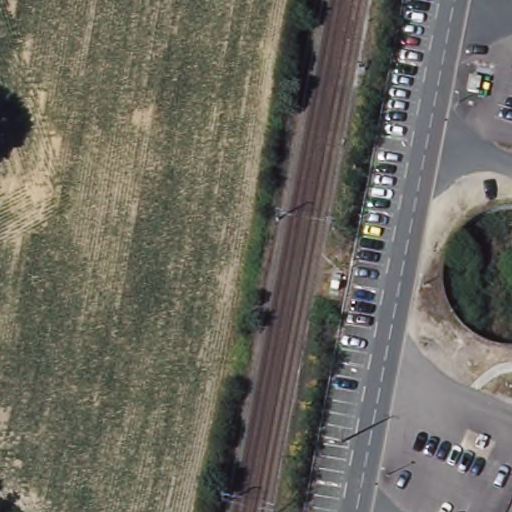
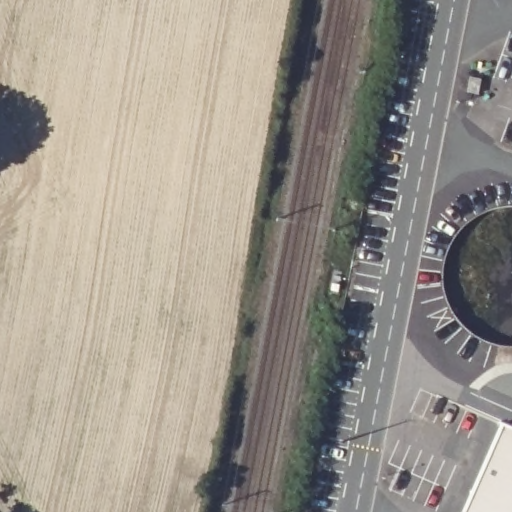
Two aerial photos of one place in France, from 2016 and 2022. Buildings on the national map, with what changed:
unchanged [(471,78),(482,80),(479,94),(468,92),(471,78)]
new [(512,426),(512,512),(463,512),(503,422),(512,426)]

